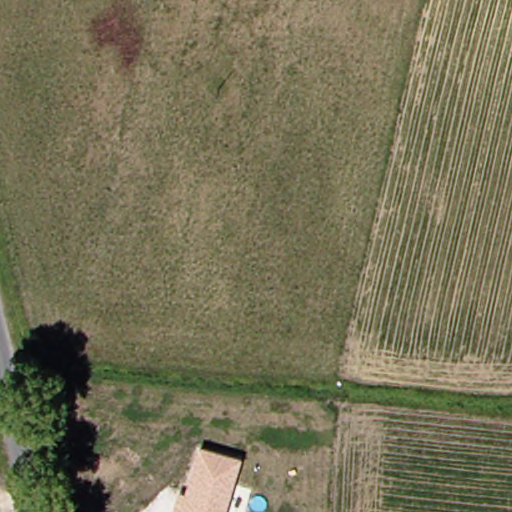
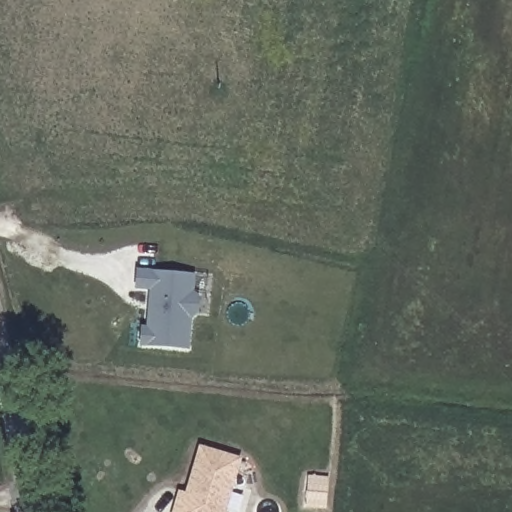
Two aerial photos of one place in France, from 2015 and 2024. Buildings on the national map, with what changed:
new [(196,272),(194,288),(201,296),(199,310),(193,317),(190,347),(143,343),(144,326),(150,326),(151,308),(151,302),(153,287),(138,286),(138,269),(196,272)]
unchanged [(239,458),(225,512),(176,512),(178,502),(181,492),(188,494),(200,447),(239,458)]

